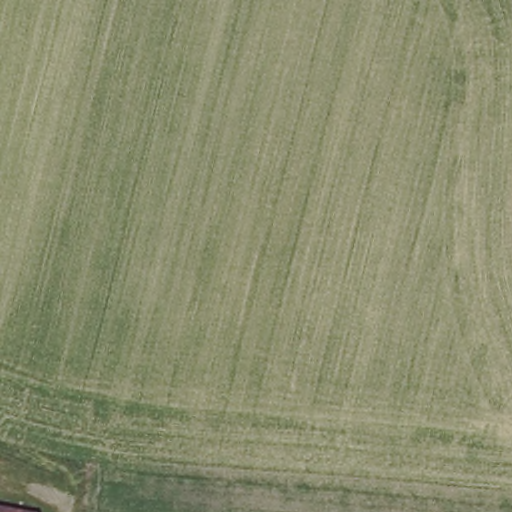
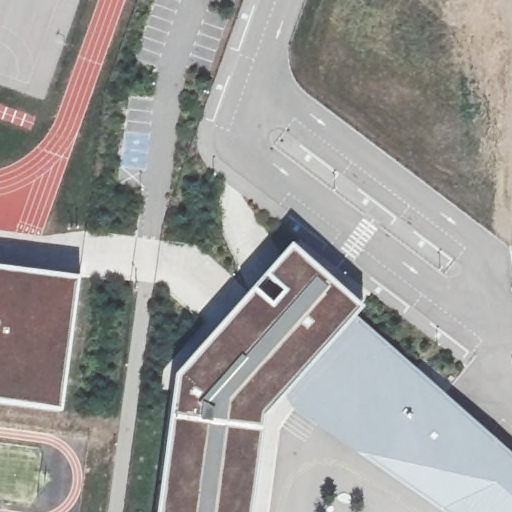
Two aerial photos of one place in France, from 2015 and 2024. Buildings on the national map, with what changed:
new [(139,408),(152,408),(152,369),(262,242),(337,314),(293,357),(239,412),(236,512),(124,512),(139,408)]
new [(31,402),(0,398),(0,262),(50,268),(31,402)]
new [(512,468),(512,512),(470,512),(293,357),(337,314),(512,468)]
unchanged [(0,511),(3,512),(0,512),(0,511)]

